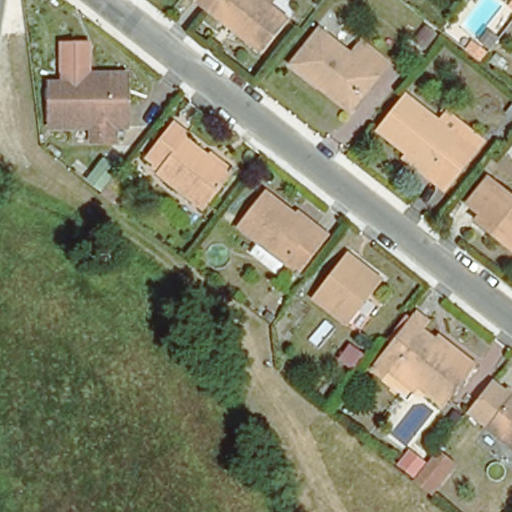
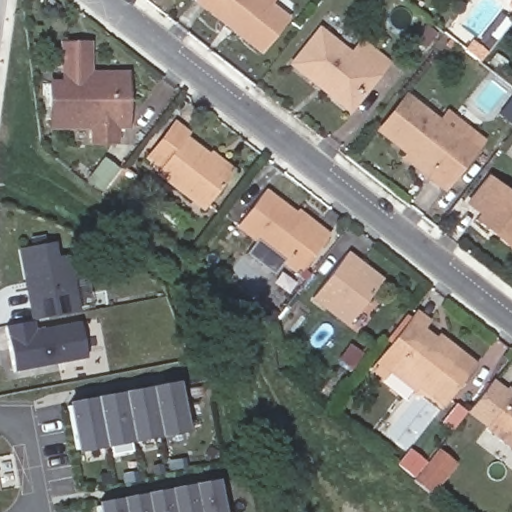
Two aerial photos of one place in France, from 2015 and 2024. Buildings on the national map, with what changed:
unchanged [(206,11),(194,0),(268,0),(265,4),(286,21),(261,54),(245,41),(220,21),(206,11)]
unchanged [(374,0),(390,0),(393,2),(379,20),(366,10),(374,0)]
unchanged [(311,87),(285,66),(313,31),(344,55),(355,41),(381,63),(370,77),(343,112),(311,87)]
unchanged [(475,39),(488,50),(481,59),(480,61),(478,60),(465,50),(475,39)]
unchanged [(115,126),(115,142),(88,142),(89,125),(47,124),(47,82),(60,82),(60,42),(87,43),(86,74),(114,75),(125,75),(125,100),(125,126),(115,126)]
unchanged [(496,53),(508,63),(502,71),(490,61),(496,53)]
unchanged [(390,148),(363,127),(390,93),(423,119),(432,106),(467,134),(458,147),(428,186),(410,173),(385,154),(390,148)]
unchanged [(152,189),(161,178),(153,172),(155,168),(142,158),(170,122),(184,133),(179,138),(201,156),(205,151),(229,170),(225,174),(197,207),(185,198),(176,209),(152,189)]
unchanged [(104,157),(118,168),(101,190),(87,178),(104,157)]
unchanged [(133,177),(117,197),(107,190),(123,169),(133,177)]
unchanged [(480,227),(465,215),(470,210),(458,200),(478,174),(512,201),(512,232),(505,240),(502,244),(480,227)]
unchanged [(295,269),(280,258),(279,257),(270,268),(244,248),(254,236),(232,220),(259,186),(288,209),(292,203),(311,219),(326,230),(295,269)]
new [(29,321),(16,249),(55,242),(57,256),(68,255),(80,312),(29,321)]
unchanged [(307,297),(341,253),(376,280),(341,325),(307,297)]
unchanged [(270,316),(259,307),(277,284),(289,293),(270,316)]
unchanged [(423,317),(435,327),(432,330),(443,339),(454,348),(457,343),(485,366),(455,404),(431,385),(427,389),(402,369),(394,379),(381,368),(423,317)]
new [(15,373),(5,327),(32,322),(34,330),(79,322),(85,357),(15,373)]
unchanged [(365,344),(379,355),(372,364),(368,369),(355,358),(365,344)]
new [(75,450),(67,406),(177,385),(186,429),(75,450)]
unchanged [(476,432),(502,398),(512,405),(512,460),(476,432)]
unchanged [(437,451),(453,464),(430,493),(421,486),(414,480),(437,451)]
new [(96,512),(95,507),(217,483),(222,512),(96,512)]

